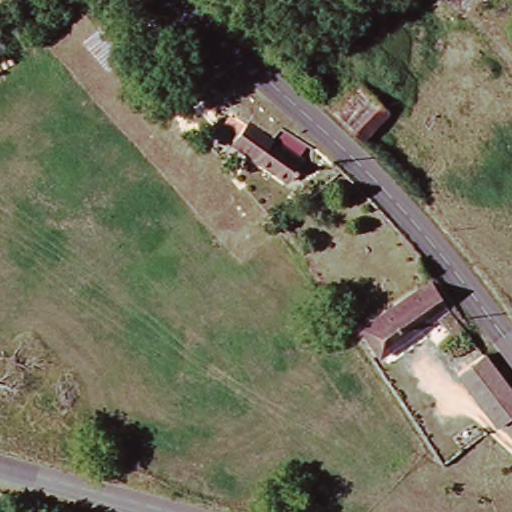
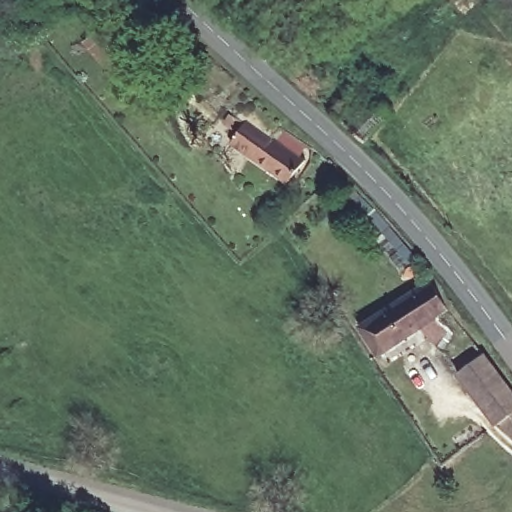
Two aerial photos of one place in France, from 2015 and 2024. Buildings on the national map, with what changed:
unchanged [(332,105),(349,86),(386,120),(370,139),(332,105)]
unchanged [(278,140),(307,164),(290,185),(237,143),(250,126),(274,145),(278,140)]
unchanged [(441,326),(451,340),(436,355),(420,338),(381,361),(362,332),(430,288),(450,320),(441,326)]
unchanged [(500,423),(494,426),(455,370),(480,353),(512,399),(512,436),(510,438),(500,423)]
unchanged [(450,460),(445,464),(413,419),(418,415),(450,460)]

